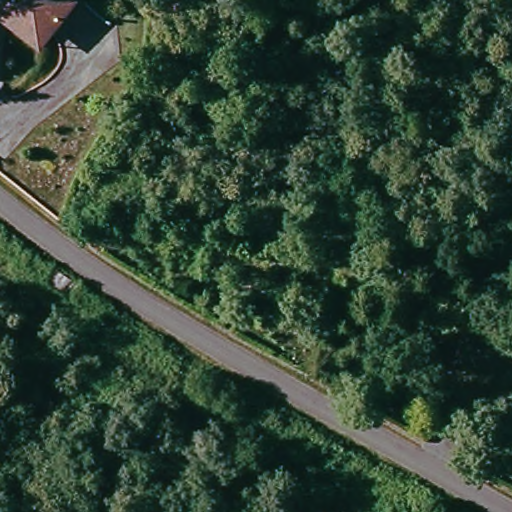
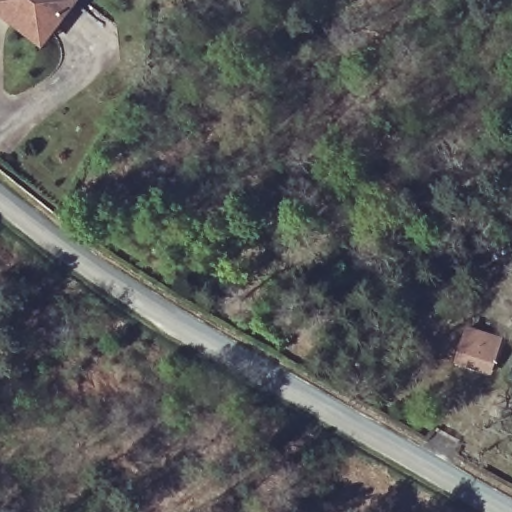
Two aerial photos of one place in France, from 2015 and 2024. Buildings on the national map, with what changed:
unchanged [(54,44),(1,1),(2,0),(26,0),(64,31),(54,44)]
unchanged [(64,31),(26,0),(87,0),(64,31)]
new [(503,337),(491,375),(454,363),(466,325),(503,337)]
unchanged [(488,400),(457,393),(464,372),(492,380),(488,400)]

